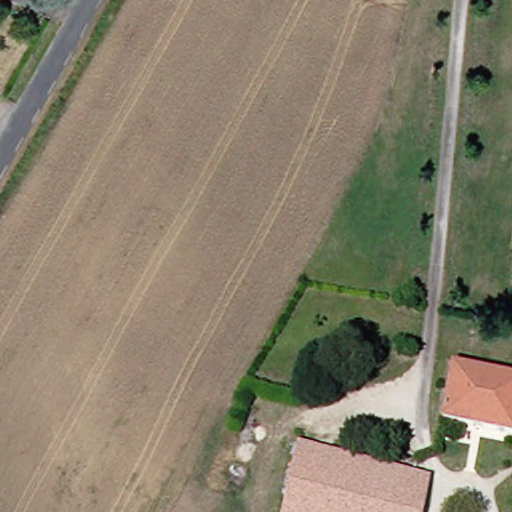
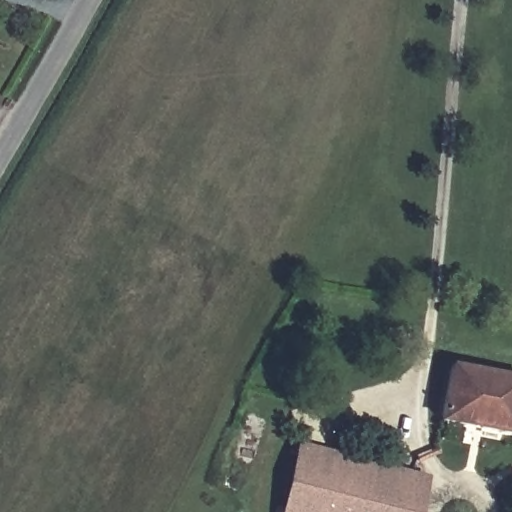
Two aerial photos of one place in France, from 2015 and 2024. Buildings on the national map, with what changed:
unchanged [(512,379),(512,424),(510,435),(439,420),(451,366),(512,379)]
unchanged [(381,460),(371,512),(297,512),(310,447),(381,460)]
unchanged [(408,475),(400,512),(371,512),(381,460),(399,464),(408,475)]

